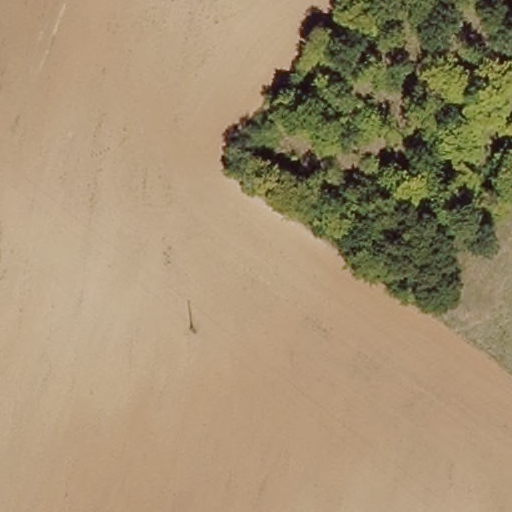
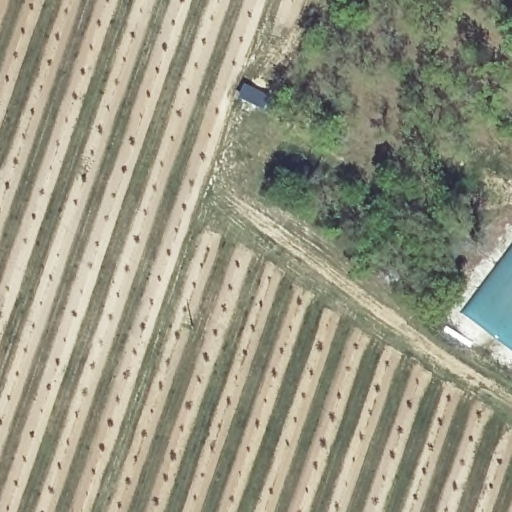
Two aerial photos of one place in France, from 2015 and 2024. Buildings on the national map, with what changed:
new [(512,351),(465,315),(482,292),(478,289),(503,256),(512,246),(512,351)]

